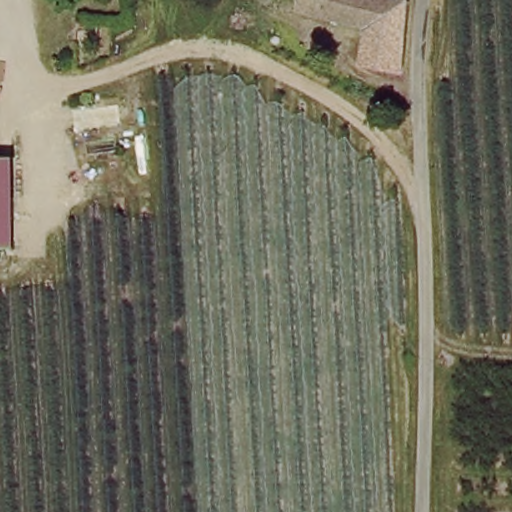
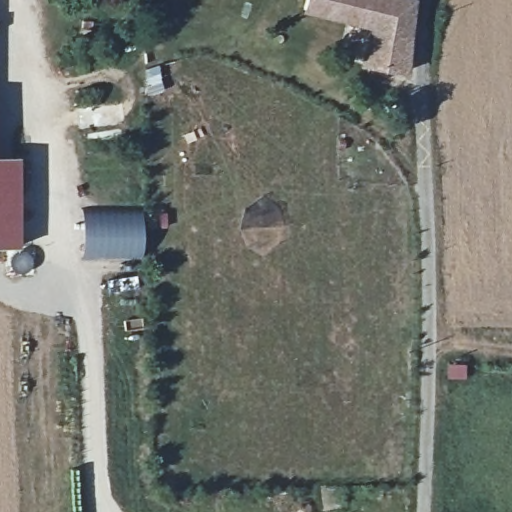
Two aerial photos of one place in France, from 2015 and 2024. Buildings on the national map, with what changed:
unchanged [(364,71),(370,31),(304,13),(307,0),(409,0),(414,1),(410,37),(409,74),(409,78),(364,71)]
unchanged [(0,161),(19,160),(20,247),(0,247),(0,161)]
new [(143,206),(142,258),(81,260),(81,207),(143,206)]

